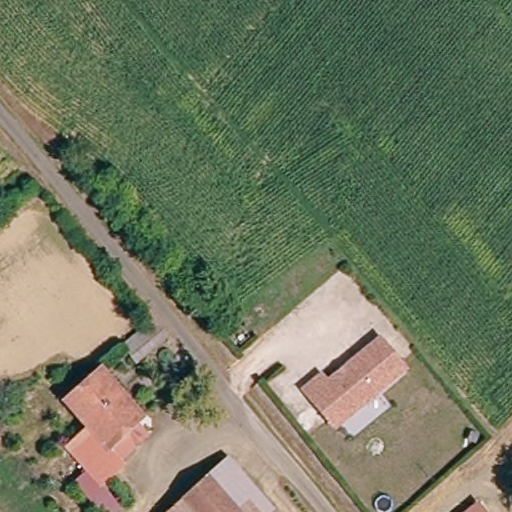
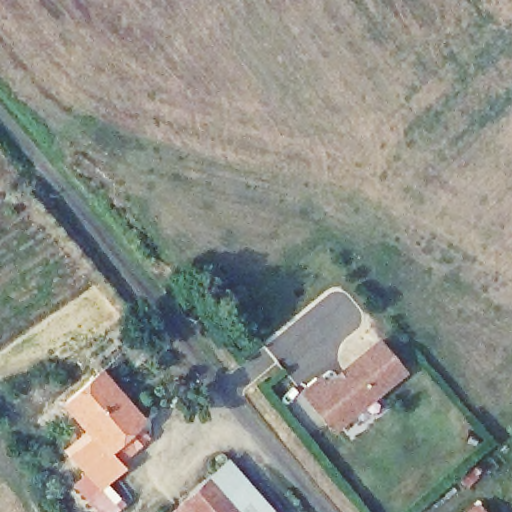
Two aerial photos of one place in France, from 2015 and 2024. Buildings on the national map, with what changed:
unchanged [(172,335),(145,357),(133,343),(160,320),(172,335)]
unchanged [(334,434),(303,397),(320,383),(326,390),(378,345),(403,374),(334,434)]
unchanged [(118,512),(103,512),(73,485),(88,474),(86,471),(64,447),(86,427),(65,401),(99,372),(141,421),(139,423),(153,440),(123,466),(106,481),(100,486),(121,509),(118,512)]
unchanged [(186,505),(213,482),(235,462),(252,481),(279,512),(178,512),(186,505)]
unchanged [(485,506),(490,512),(478,512),(485,506)]

